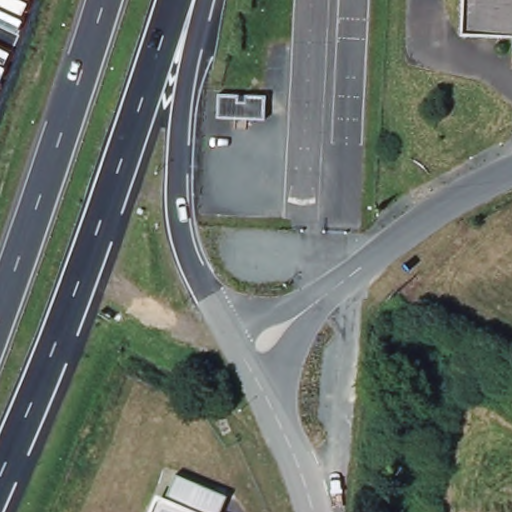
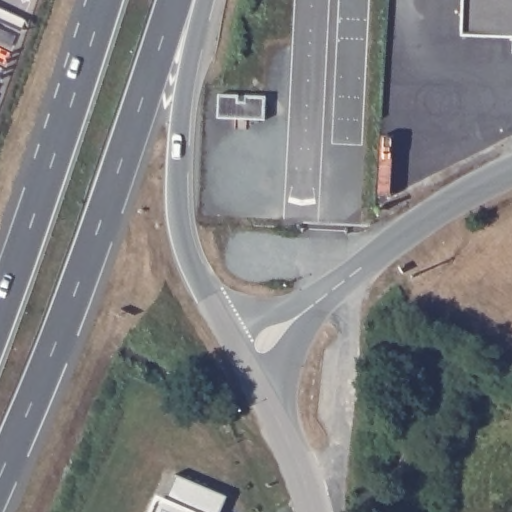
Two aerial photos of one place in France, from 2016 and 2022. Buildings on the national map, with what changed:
unchanged [(458,35),(459,0),(512,0),(512,36),(458,35)]
unchanged [(264,92),(264,115),(216,113),(215,91),(264,92)]
unchanged [(225,497),(219,512),(147,512),(155,495),(164,498),(173,476),(225,497)]

